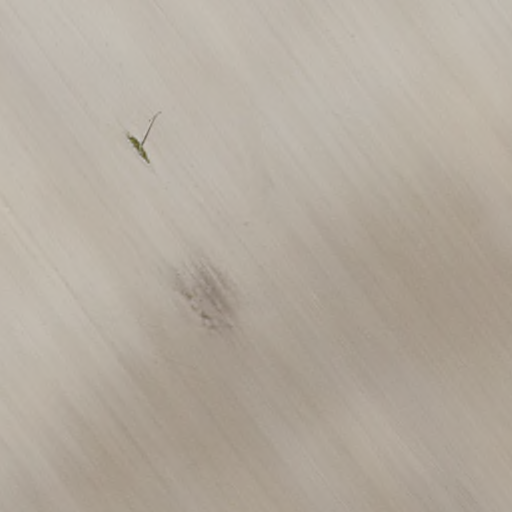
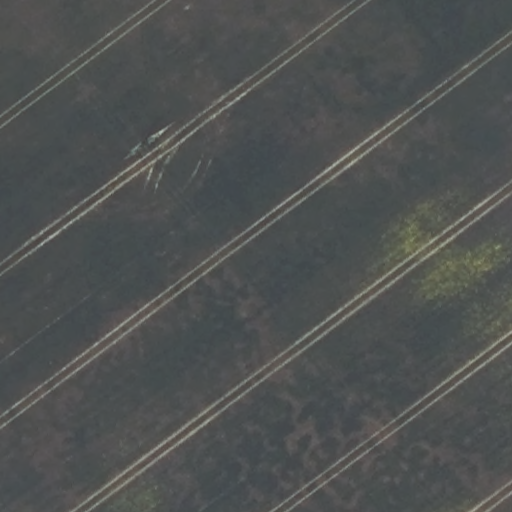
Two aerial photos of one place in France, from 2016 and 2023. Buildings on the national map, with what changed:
[]

